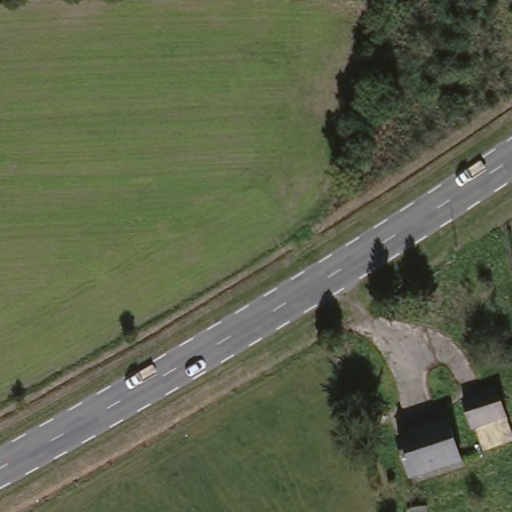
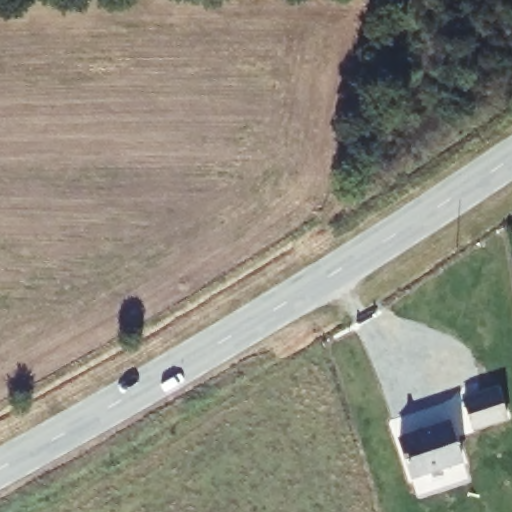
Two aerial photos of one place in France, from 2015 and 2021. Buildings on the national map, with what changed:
unchanged [(485,446),(479,427),(474,428),(464,400),(498,389),(508,417),(512,432),(512,437),(485,446)]
unchanged [(468,455),(417,471),(404,434),(455,418),(468,455)]
unchanged [(409,512),(409,509),(428,506),(428,512),(409,512)]

